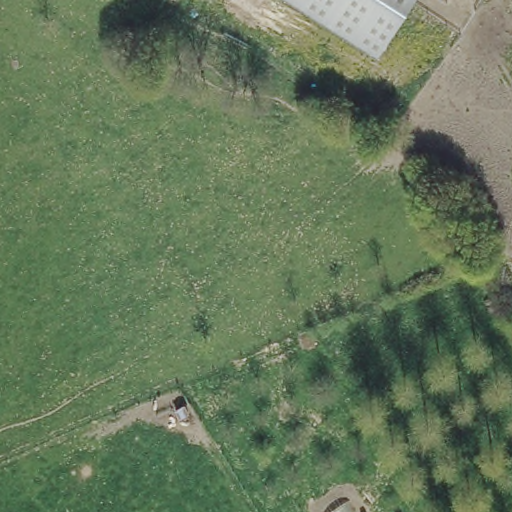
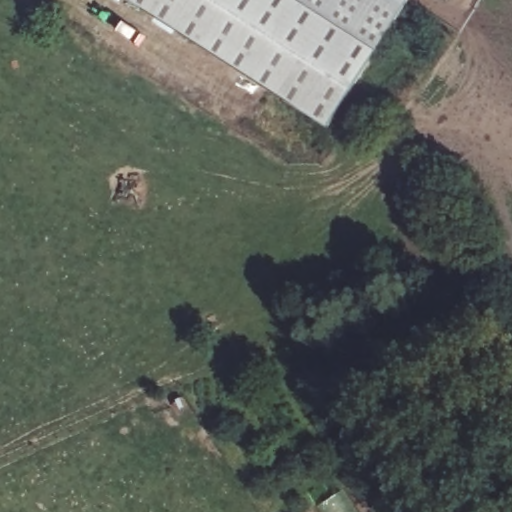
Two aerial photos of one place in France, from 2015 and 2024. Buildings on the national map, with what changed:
new [(130,0),(317,0),(382,39),(327,126),(130,0)]
unchanged [(317,0),(406,0),(382,39),(317,0)]

